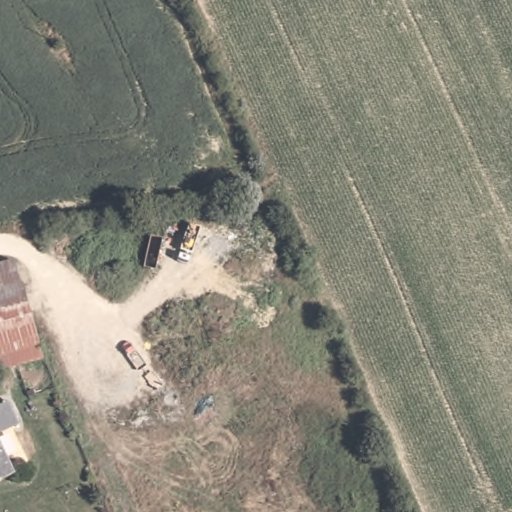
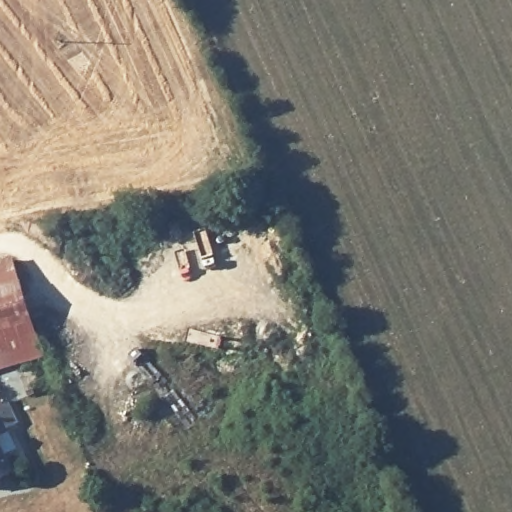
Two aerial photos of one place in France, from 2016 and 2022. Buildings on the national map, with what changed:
unchanged [(11,260),(19,286),(41,358),(0,368),(0,263),(11,260)]
unchanged [(9,475),(0,479),(0,456),(9,475)]

